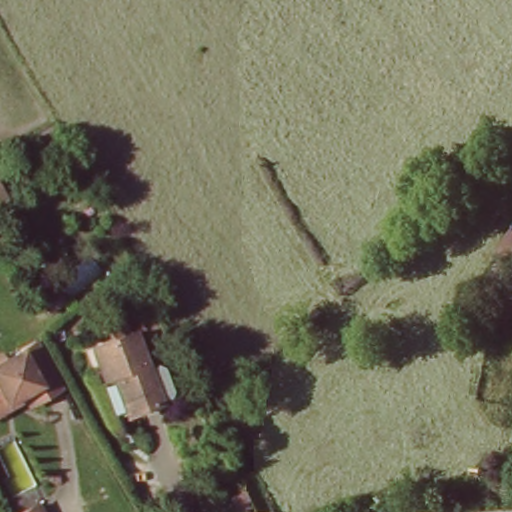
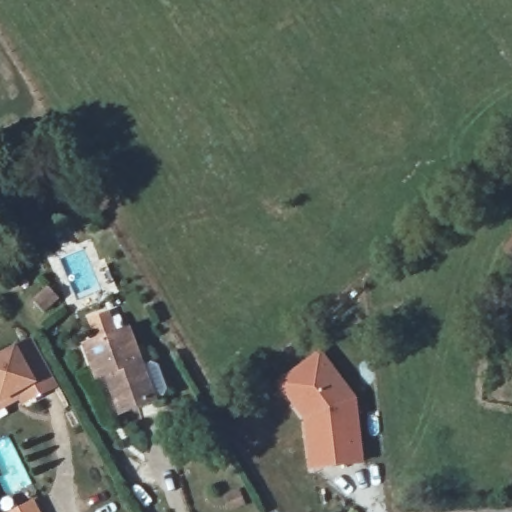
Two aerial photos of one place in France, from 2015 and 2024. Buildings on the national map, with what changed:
unchanged [(0,201),(0,183),(8,197),(0,201)]
unchanged [(512,234),(512,263),(498,252),(512,234)]
unchanged [(156,398),(124,411),(110,373),(102,377),(88,345),(129,330),(156,398)]
unchanged [(4,355),(38,338),(40,343),(64,385),(31,403),(30,400),(0,414),(0,349),(1,349),(4,355)]
new [(309,471),(304,420),(276,382),(321,350),(358,398),(365,463),(309,471)]
unchanged [(38,500),(44,512),(13,512),(38,500)]

